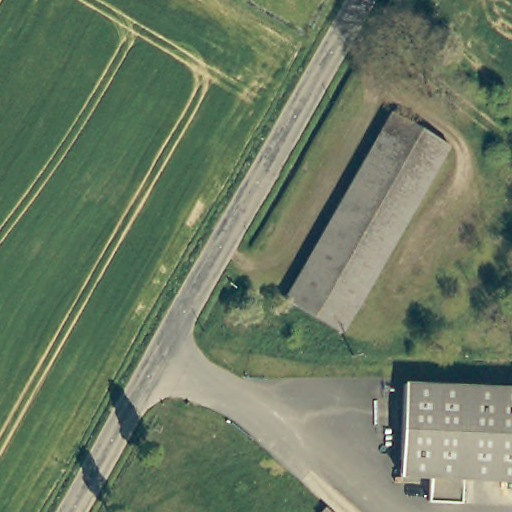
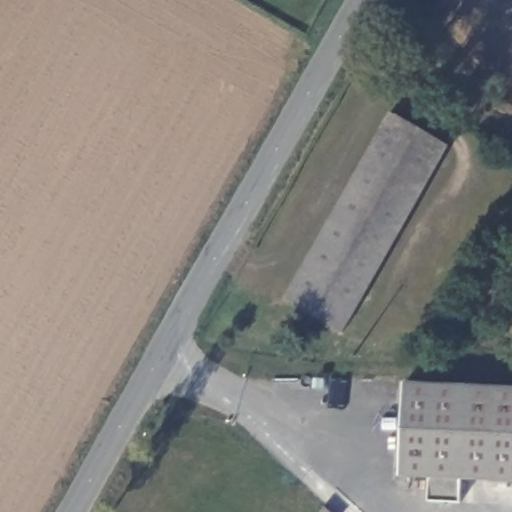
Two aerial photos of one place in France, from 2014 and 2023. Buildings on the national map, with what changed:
unchanged [(343,333),(284,299),(391,112),(450,146),(343,333)]
unchanged [(512,481),(464,478),(463,501),(427,499),(428,476),(399,475),(404,384),(512,390),(512,481)]
unchanged [(323,512),(326,508),(331,512),(323,512)]

